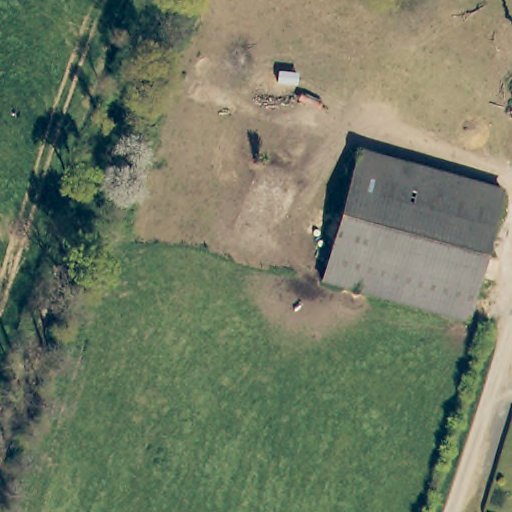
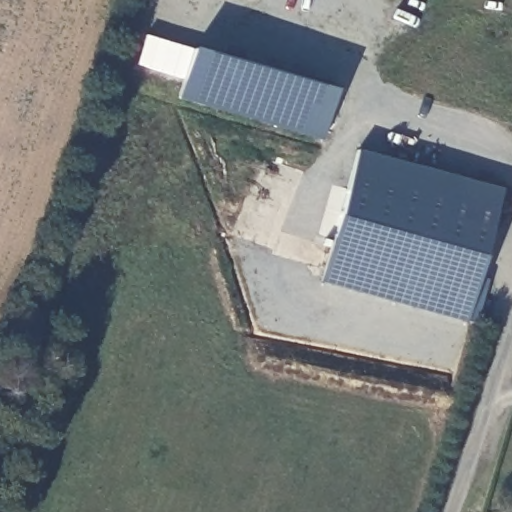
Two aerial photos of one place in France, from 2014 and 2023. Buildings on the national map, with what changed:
new [(337,92),(324,141),(178,100),(193,50),(337,92)]
unchanged [(338,242),(362,156),(506,195),(483,282),(338,242)]
unchanged [(483,282),(471,326),(326,286),(338,242),(483,282)]

